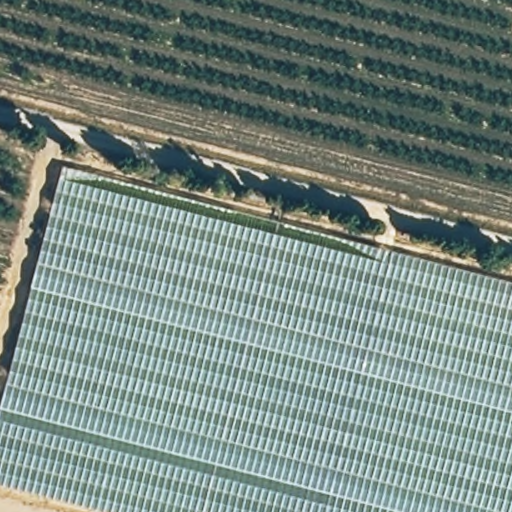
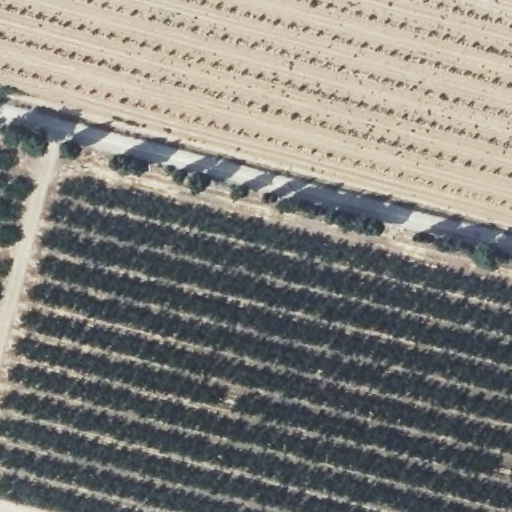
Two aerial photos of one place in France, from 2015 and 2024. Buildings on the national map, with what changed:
demolished [(0,484),(0,404),(61,165),(512,284),(512,512),(108,512),(0,484)]

